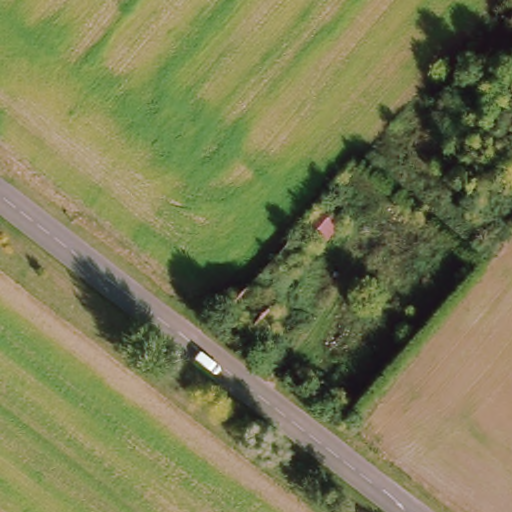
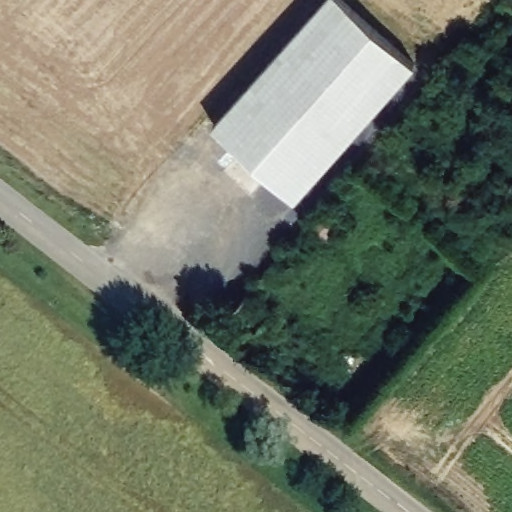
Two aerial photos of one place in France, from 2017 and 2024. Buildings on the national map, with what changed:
new [(329,0),(342,0),(417,66),(298,201),(217,129),(329,0)]
unchanged [(305,222),(318,207),(342,226),(328,242),(305,222)]

